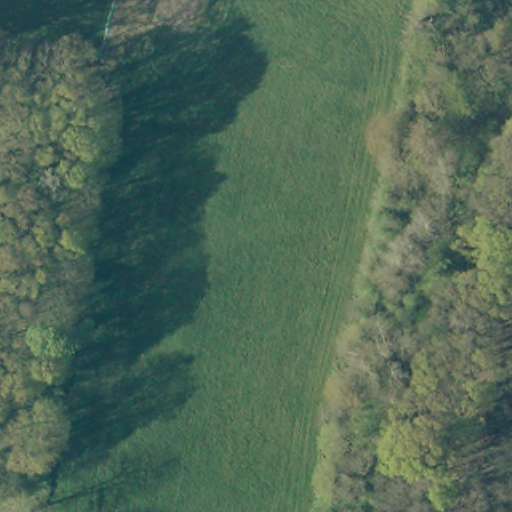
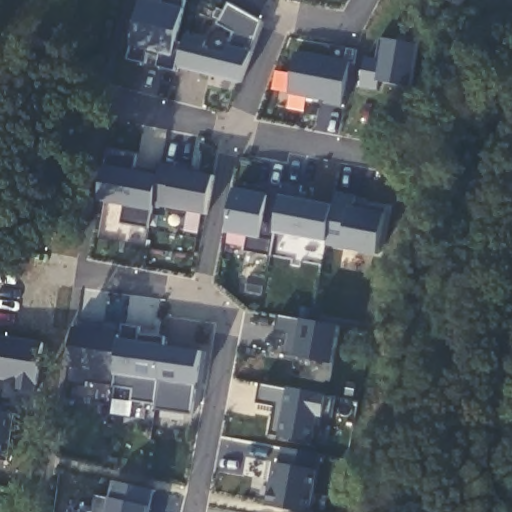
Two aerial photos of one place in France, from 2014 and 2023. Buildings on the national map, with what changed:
new [(197,72),(175,67),(173,72),(156,67),(159,54),(149,52),(146,63),(125,59),(129,42),(139,0),(151,0),(161,3),(162,0),(185,0),(176,32),(204,40),(203,48),(226,52),(231,32),(216,22),(227,4),(263,24),(239,82),(197,72)]
new [(412,87),(377,81),(381,61),(375,60),(379,40),(398,42),(399,37),(417,41),(412,87)]
new [(341,105),(318,102),(319,98),(287,92),(294,51),(350,62),(341,105)]
new [(133,171),(157,176),(150,211),(147,227),(119,223),(123,206),(94,201),(102,165),(105,149),(134,155),(133,171)]
new [(205,214),(165,207),(172,167),(213,175),(205,214)]
new [(376,254),(326,245),(327,242),(271,232),(267,255),(243,250),(246,237),(224,232),(233,185),(279,192),(282,182),(301,185),(298,199),(331,205),(334,195),(354,199),(352,207),(383,212),(376,254)]
new [(333,363),(283,355),(287,335),(273,333),(276,316),(340,327),(333,363)]
new [(195,386),(191,415),(155,410),(156,406),(131,403),(134,388),(84,381),(83,386),(63,383),(66,363),(72,327),(73,321),(101,324),(102,321),(121,323),(119,333),(119,340),(201,351),(195,386)]
new [(34,393),(12,388),(13,380),(0,377),(0,336),(44,342),(34,393)]
new [(331,418),(321,417),(316,442),(269,435),(276,406),(258,402),(262,383),(337,397),(331,418)]
new [(7,461),(0,460),(0,413),(15,415),(7,461)]
new [(260,504),(268,462),(279,465),(283,449),(321,455),(310,512),(304,512),(260,504)]
new [(150,512),(93,512),(98,495),(113,497),(117,481),(155,490),(150,512)]
new [(80,510),(93,512),(80,512),(80,510)]

